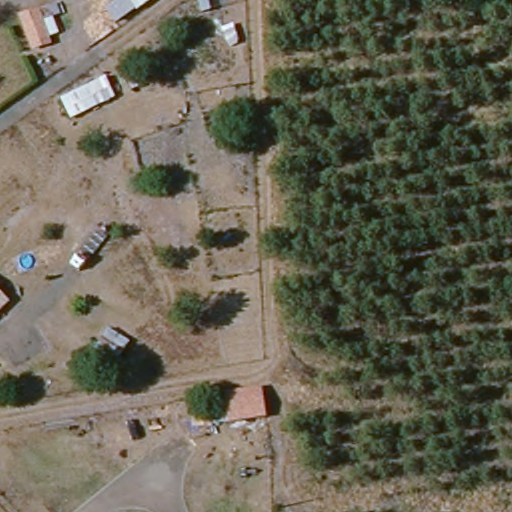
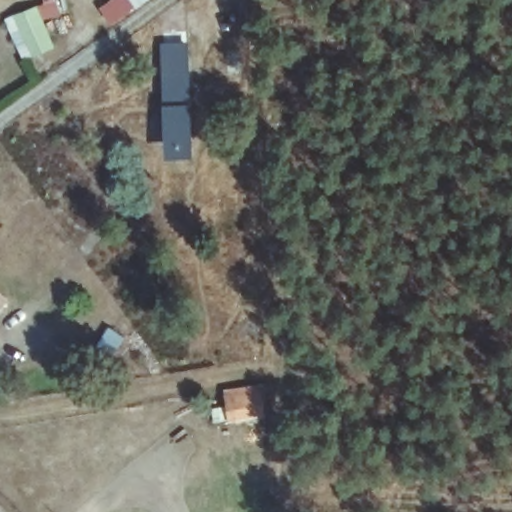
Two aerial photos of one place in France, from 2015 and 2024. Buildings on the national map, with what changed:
unchanged [(56,2),(66,26),(51,33),(54,42),(33,48),(19,15),(56,2)]
new [(170,159),(162,45),(187,44),(195,157),(170,159)]
unchanged [(0,314),(0,296),(8,307),(0,314)]

